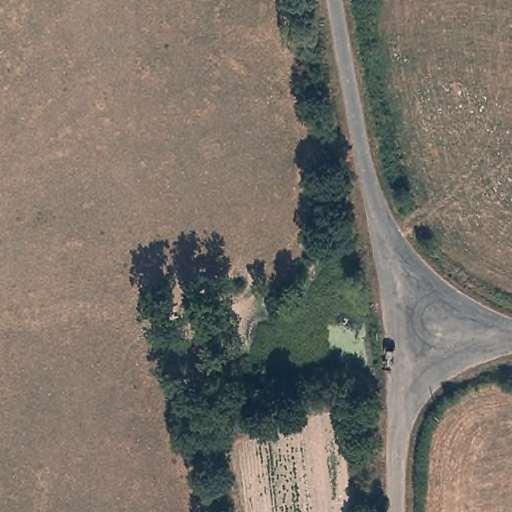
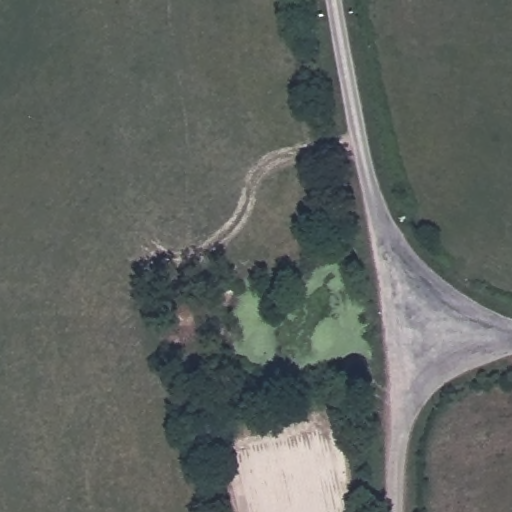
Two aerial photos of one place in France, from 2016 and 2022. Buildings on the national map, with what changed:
unchanged [(213,436),(197,437),(197,427),(211,426),(213,436)]

